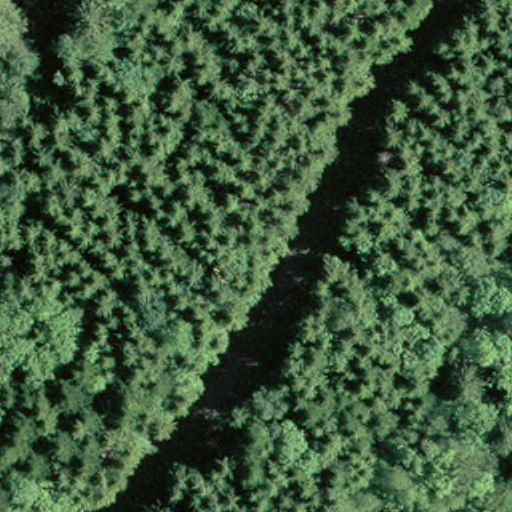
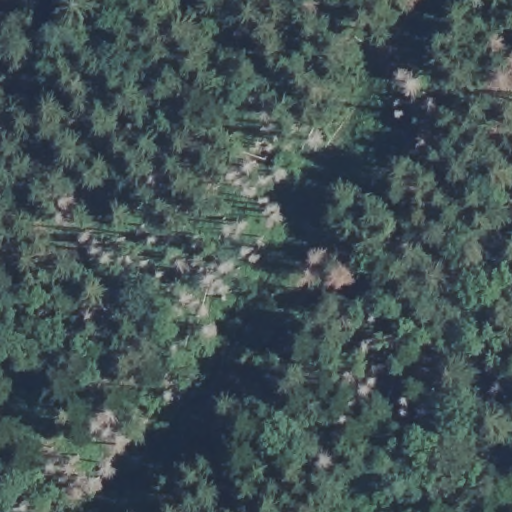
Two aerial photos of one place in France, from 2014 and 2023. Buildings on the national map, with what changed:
[]

